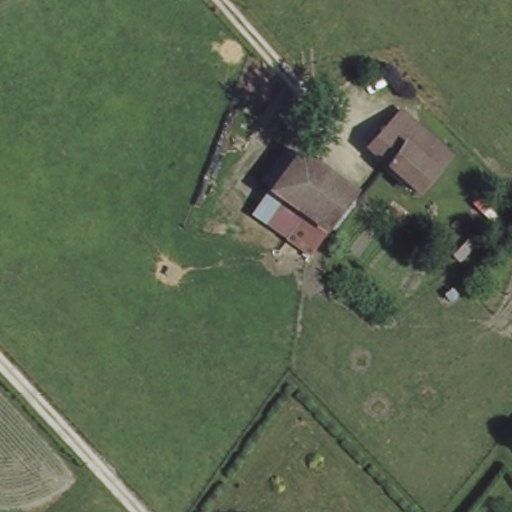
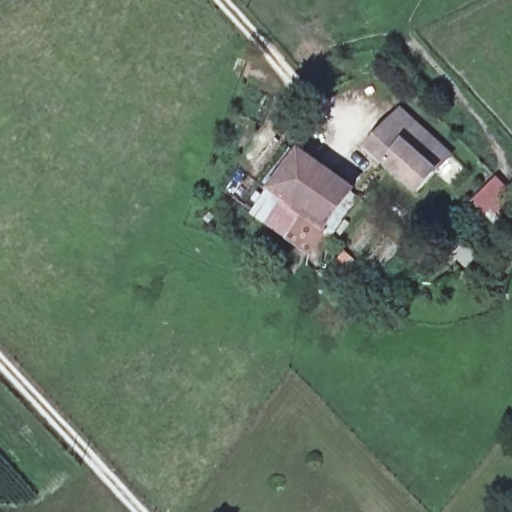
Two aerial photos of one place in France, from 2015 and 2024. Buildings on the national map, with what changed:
unchanged [(410,191),(367,144),(397,111),(399,108),(447,151),(437,161),(410,191)]
unchanged [(295,149),(361,198),(318,257),(298,243),(314,222),(267,188),(295,149)]
unchanged [(314,222),(298,243),(253,209),(267,188),(314,222)]

